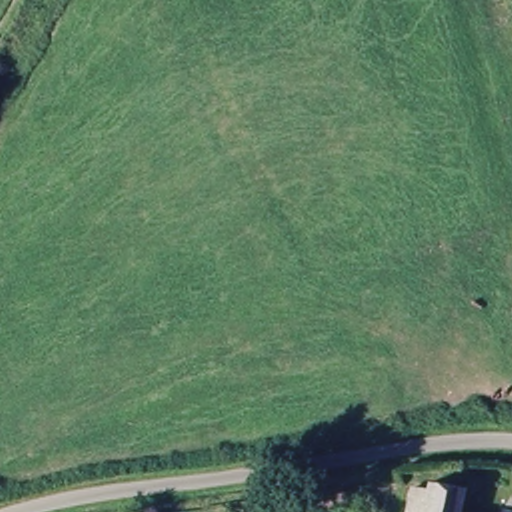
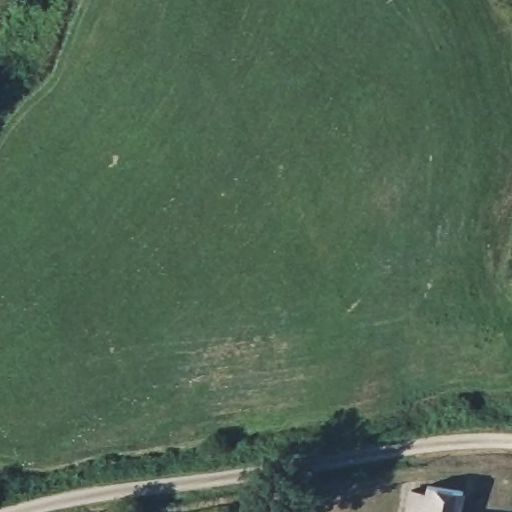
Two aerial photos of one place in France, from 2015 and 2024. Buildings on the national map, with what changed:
unchanged [(466,489),(460,512),(411,512),(424,478),(466,489)]

